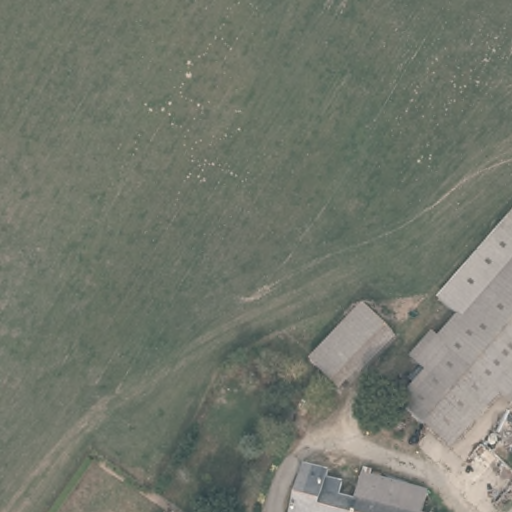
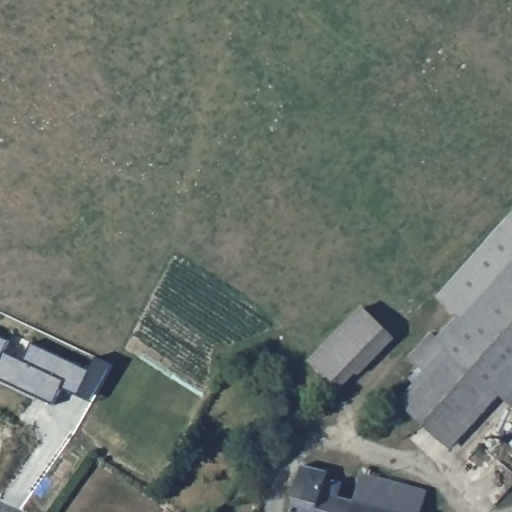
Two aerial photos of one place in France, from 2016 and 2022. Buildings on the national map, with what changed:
unchanged [(505,254),(512,245),(512,260),(505,254)]
unchanged [(453,320),(505,254),(512,260),(512,367),(453,320)]
unchanged [(331,388),(304,363),(362,307),(387,333),(331,388)]
unchanged [(453,320),(512,367),(512,370),(495,391),(447,450),(394,408),(441,349),(428,340),(446,315),(453,320)]
new [(5,351),(25,360),(31,342),(90,370),(79,394),(62,386),(53,403),(0,379),(0,335),(10,340),(5,351)]
unchanged [(508,400),(495,391),(512,370),(512,394),(508,400)]
unchanged [(303,471),(327,480),(324,490),(344,496),(339,512),(289,512),(303,471)]
unchanged [(424,512),(394,512),(355,500),(365,472),(428,494),(431,495),(424,512)]
unchanged [(344,496),(355,500),(394,512),(339,512),(344,496)]

